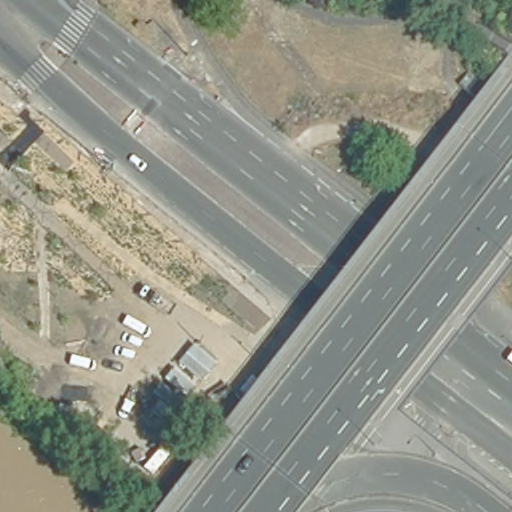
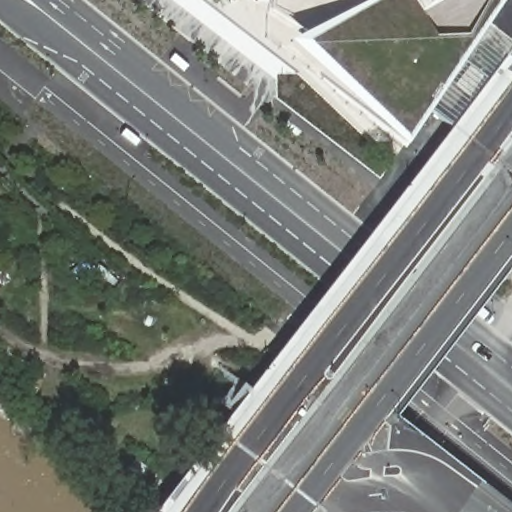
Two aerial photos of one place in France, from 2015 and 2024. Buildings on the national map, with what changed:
new [(368,0),(505,0),(406,145),(286,42),(368,0)]
unchanged [(471,69),(486,80),(488,81),(476,96),(475,95),(459,84),(471,69)]

